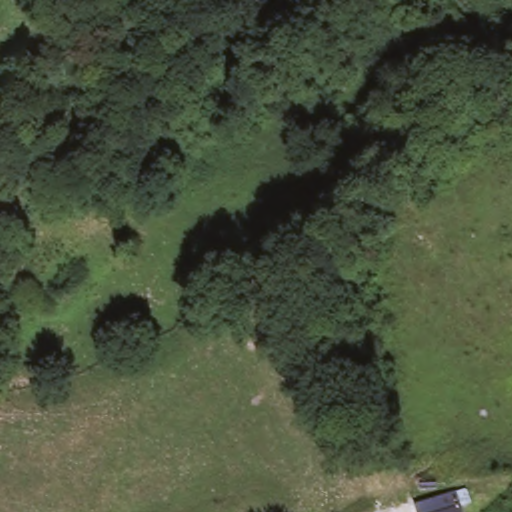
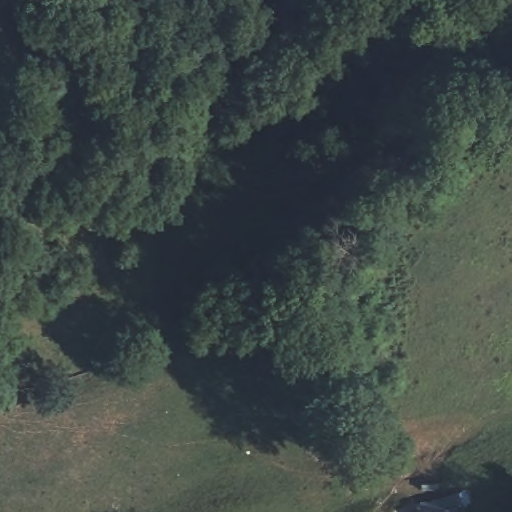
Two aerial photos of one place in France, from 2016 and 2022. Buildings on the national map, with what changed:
unchanged [(466,512),(456,512),(465,508),(466,512)]

